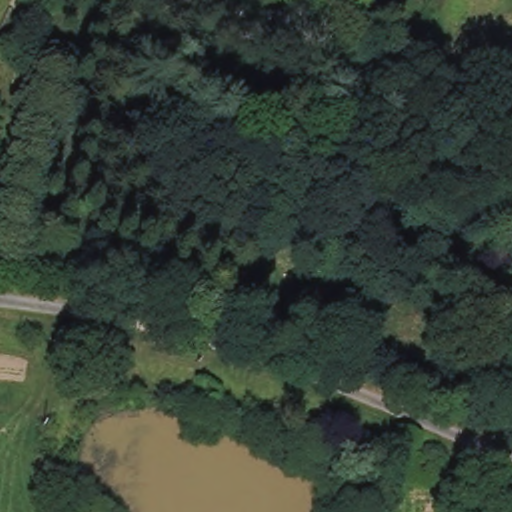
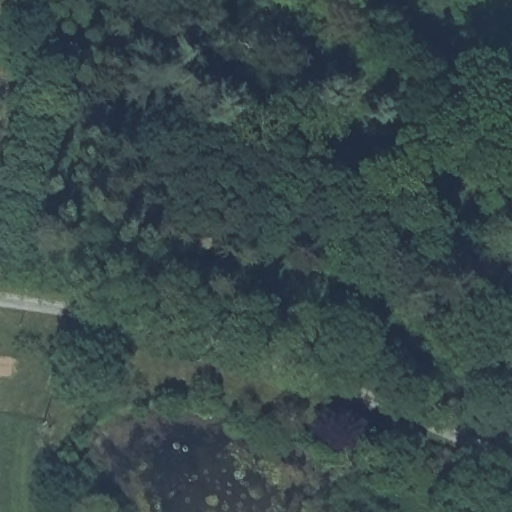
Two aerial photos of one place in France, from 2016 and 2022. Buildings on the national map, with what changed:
unchanged [(422,454),(417,464),(397,455),(401,444),(422,454)]

